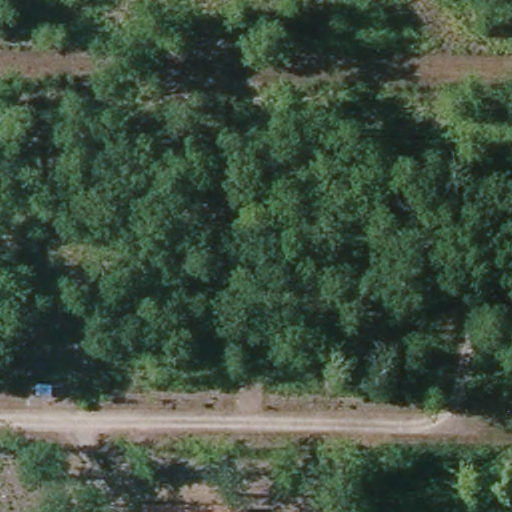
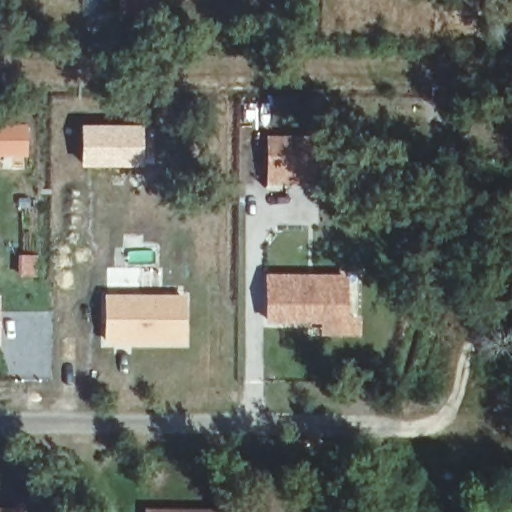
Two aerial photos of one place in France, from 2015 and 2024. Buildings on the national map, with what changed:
new [(27,121),(27,156),(0,156),(0,122),(27,121)]
new [(80,125),(143,125),(142,168),(80,167),(80,125)]
new [(265,136),(321,136),(320,186),(265,187),(265,136)]
new [(348,274),(348,316),(361,316),(361,336),(322,336),(321,323),(266,322),(266,275),(348,274)]
new [(103,345),(103,295),(186,296),(185,346),(103,345)]
new [(21,512),(0,512),(0,508),(21,507),(21,512)]
unchanged [(248,512),(214,512),(248,511),(248,512)]

